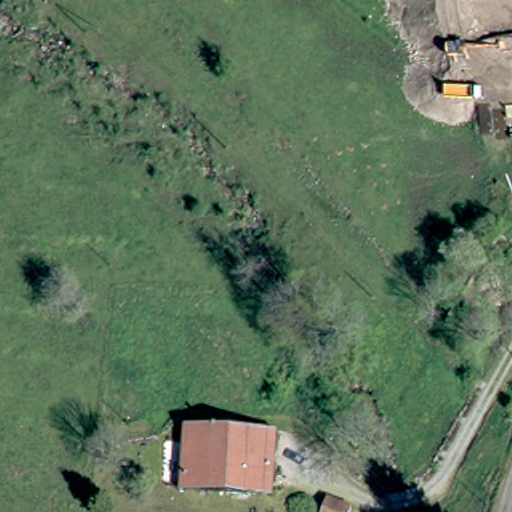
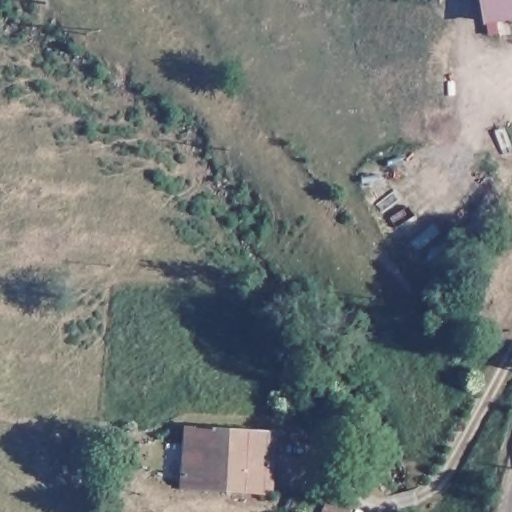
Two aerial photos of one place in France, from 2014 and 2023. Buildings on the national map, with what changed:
new [(484,23),(480,0),(512,0),(512,18),(484,23)]
unchanged [(181,488),(188,424),(277,432),(267,496),(181,488)]
unchanged [(320,511),(345,503),(349,512),(320,512),(320,511)]

